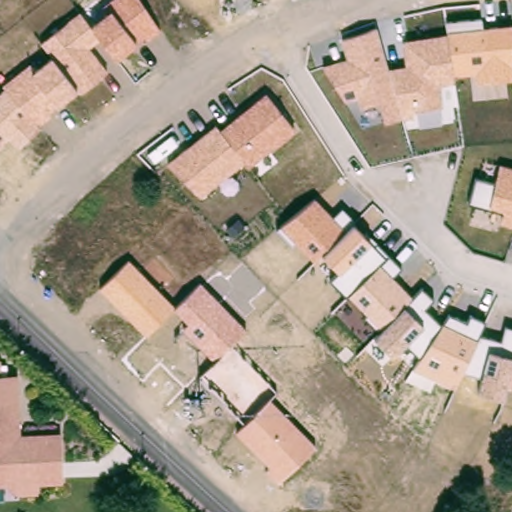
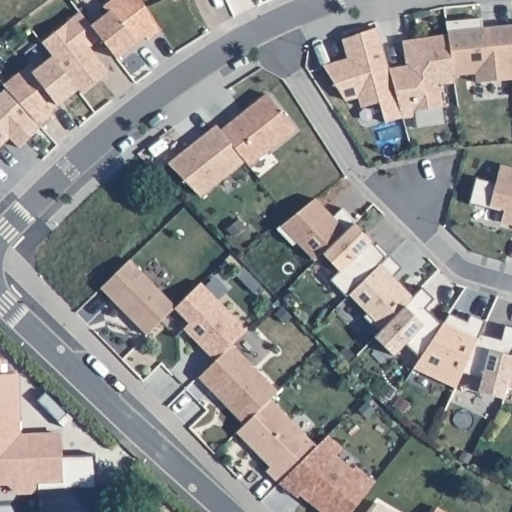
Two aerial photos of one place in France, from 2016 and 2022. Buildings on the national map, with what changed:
unchanged [(1,86),(31,63),(36,69),(50,57),(40,42),(79,10),(91,24),(104,14),(99,8),(110,0),(141,0),(161,29),(136,45),(115,61),(100,41),(91,49),(109,72),(79,95),(76,92),(58,107),(51,113),(54,117),(18,148),(9,140),(0,149),(0,93),(3,90),(1,86)]
unchanged [(323,65),(347,59),(341,40),(377,29),(388,69),(405,66),(402,42),(446,34),(445,31),(512,24),(512,27),(512,80),(476,84),(475,73),(455,76),(456,82),(439,84),(443,106),(413,111),(413,116),(385,122),(379,102),(361,108),(357,98),(345,103),(323,65)]
unchanged [(166,165),(217,124),(222,129),(267,93),(296,130),(251,168),(244,161),(200,197),(166,165)]
unchanged [(499,222),(502,211),(489,208),(469,203),(476,177),(495,182),(500,166),(512,169),(512,226),(499,222)]
unchanged [(508,387),(505,400),(478,394),(482,374),(461,371),(453,386),(414,368),(421,357),(404,343),(392,355),(373,338),(381,329),(347,298),(329,280),(338,271),(322,256),(315,263),(280,228),(316,197),(332,216),(343,206),(357,220),(353,223),(369,242),(383,257),(387,254),(402,268),(394,276),(412,297),(422,289),(433,300),(425,308),(443,325),(449,312),(468,322),(471,315),(484,321),(479,335),(501,341),(504,326),(512,329),(512,388),(508,387)]
unchanged [(183,330),(187,325),(174,311),(145,336),(100,288),(129,261),(175,306),(203,282),(247,330),(232,344),(215,361),(183,330)]
unchanged [(215,361),(232,344),(277,392),(270,399),(244,424),(199,377),(215,361)]
unchanged [(1,376),(18,375),(21,435),(64,433),(66,479),(41,480),(41,490),(24,492),(13,481),(0,482),(0,360),(1,361),(1,376)]
unchanged [(318,446),(279,483),(265,470),(269,465),(235,433),(244,424),(270,399),(318,446)]
new [(298,496),(279,483),(318,446),(328,435),(342,444),(336,453),(354,468),(357,465),(375,481),(349,512),(323,512),(300,494),(298,496)]
new [(394,512),(372,512),(379,503),(394,512)]
new [(445,512),(434,512),(437,507),(445,512)]

